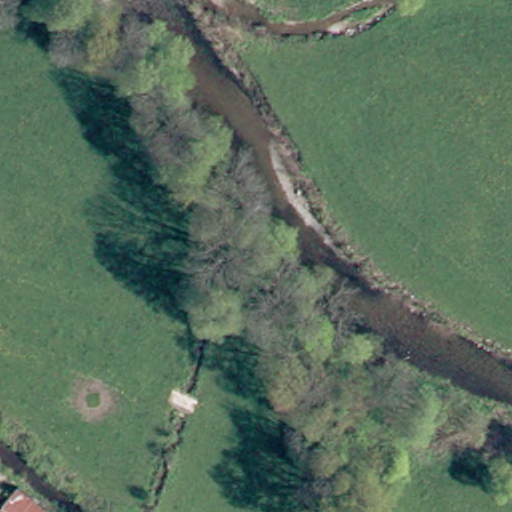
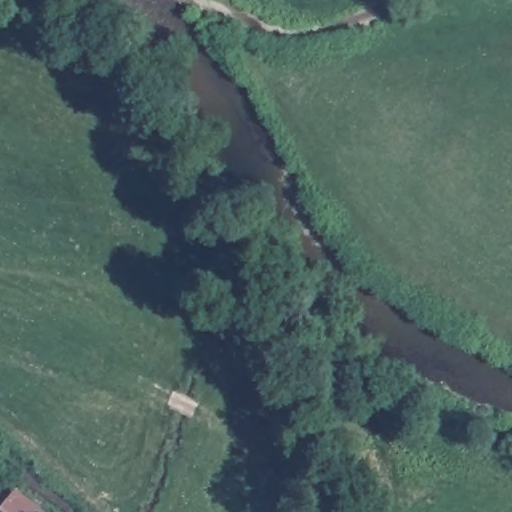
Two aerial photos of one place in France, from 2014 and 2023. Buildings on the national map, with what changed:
unchanged [(39,512),(0,512),(0,507),(7,497),(10,492),(39,512)]

